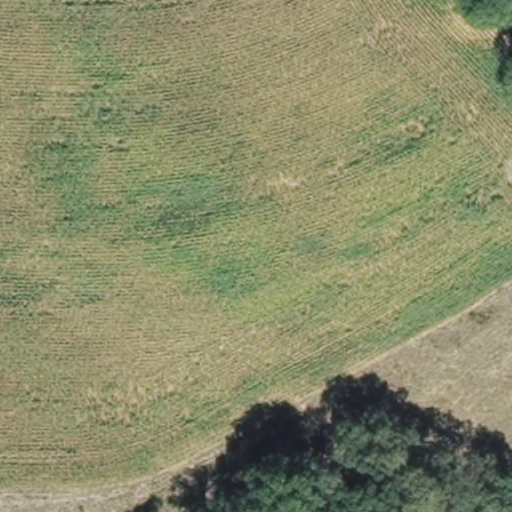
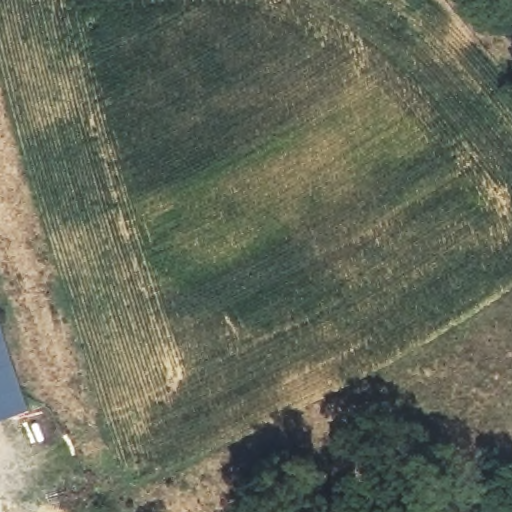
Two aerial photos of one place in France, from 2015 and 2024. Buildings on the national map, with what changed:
new [(16,390),(20,388),(27,410),(11,415),(4,393),(0,395),(0,342),(16,390)]
new [(4,393),(11,415),(0,419),(0,395),(4,393)]

